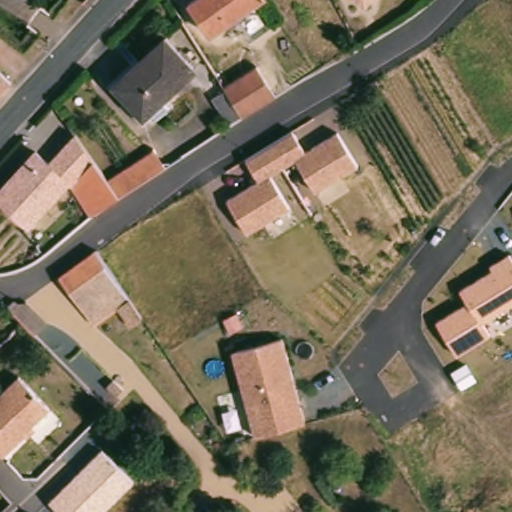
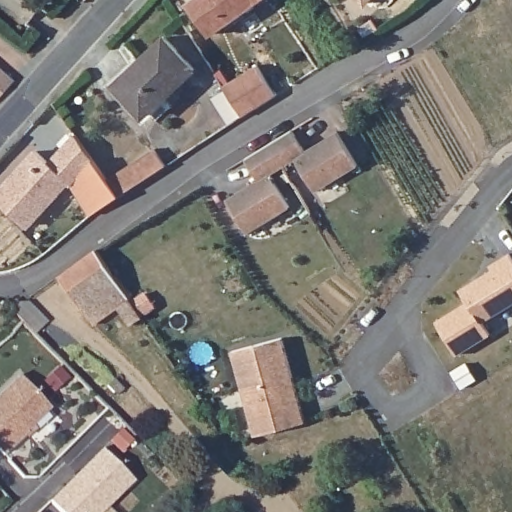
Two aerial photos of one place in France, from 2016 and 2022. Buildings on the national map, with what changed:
unchanged [(267,1),(212,40),(190,8),(201,0),(266,0),(267,1)]
unchanged [(365,11),(352,0),(374,0),(365,11)]
unchanged [(196,75),(166,102),(165,101),(143,121),(116,92),(139,72),(136,70),(166,42),(196,75)]
unchanged [(214,97),(226,90),(225,87),(258,66),(277,96),(244,117),(231,125),(214,97)]
unchanged [(10,83),(0,94),(0,74),(10,83)]
unchanged [(245,159),(292,130),(305,150),(336,131),(358,166),(314,192),(295,161),(270,175),(288,207),(245,233),(227,198),(259,180),(245,159)]
unchanged [(92,162),(108,185),(120,202),(92,221),(70,186),(29,232),(0,204),(0,198),(37,157),(50,169),(60,157),(76,140),(92,162)]
unchanged [(166,172),(120,202),(108,185),(155,154),(166,172)]
unchanged [(139,318),(127,327),(114,308),(90,326),(55,277),(92,250),(139,318)]
unchanged [(512,308),(485,323),(492,338),(456,360),(435,321),(466,302),(460,289),(490,272),(487,267),(510,254),(512,258),(512,308)]
unchanged [(48,322),(36,334),(25,322),(16,313),(9,307),(15,301),(22,307),(27,302),(48,322)]
unchanged [(285,336),(308,422),(253,438),(231,351),(285,336)]
unchanged [(51,409),(5,457),(0,453),(0,391),(17,374),(51,409)]
unchanged [(115,380),(124,390),(118,396),(109,386),(115,380)]
unchanged [(105,512),(61,512),(49,500),(102,448),(135,482),(105,512)]

